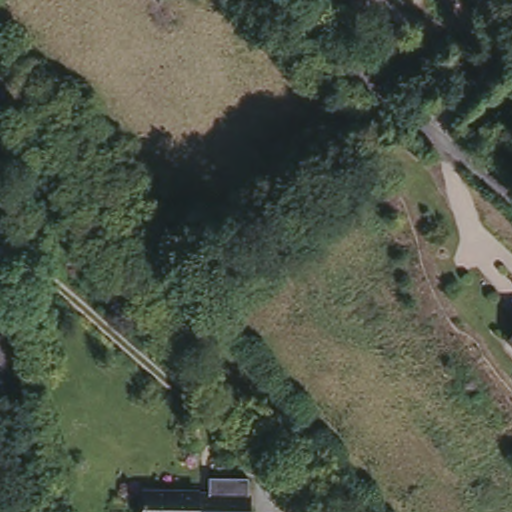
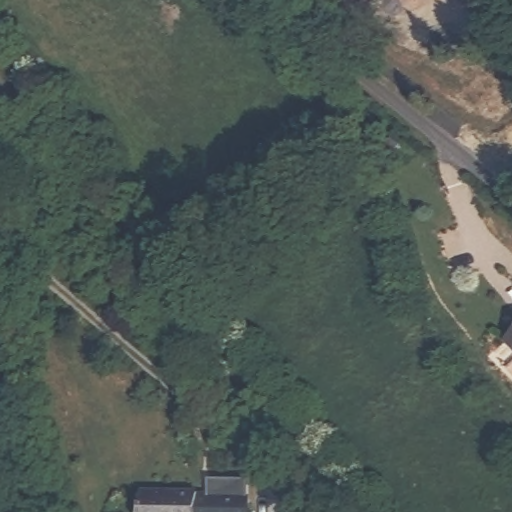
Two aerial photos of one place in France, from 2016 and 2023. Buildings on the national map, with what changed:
unchanged [(511,341),(512,340),(512,341),(511,341)]
unchanged [(147,483),(202,490),(201,493),(212,494),(214,478),(252,483),(250,512),(144,512),(147,483)]

